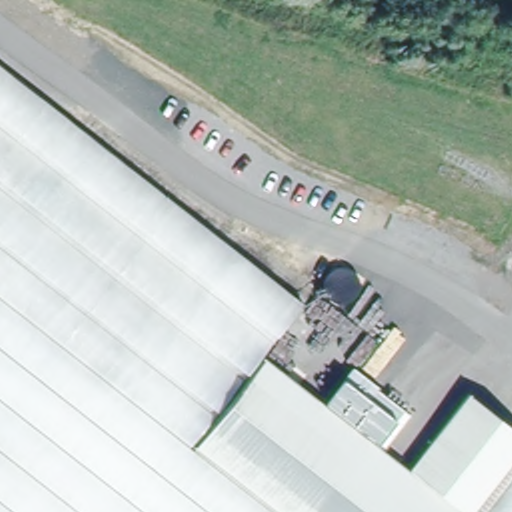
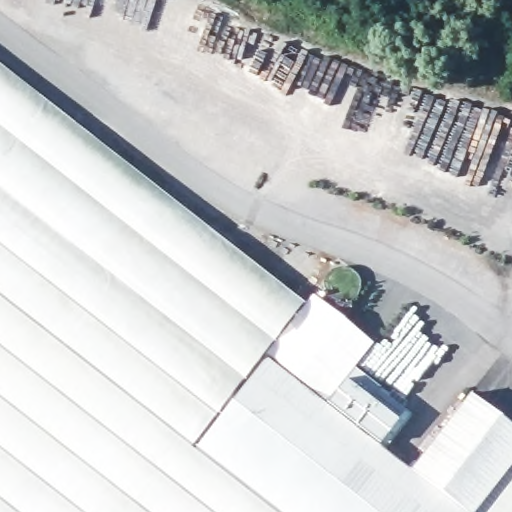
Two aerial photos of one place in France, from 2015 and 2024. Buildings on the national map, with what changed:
unchanged [(305,296),(185,442),(0,296),(0,58),(305,296)]
new [(354,367),(326,401),(265,356),(314,294),(374,343),(354,367)]
unchanged [(80,361),(0,394),(0,300),(80,361)]
unchanged [(321,407),(376,448),(407,471),(446,501),(461,512),(275,512),(191,447),(259,360),(321,407)]
unchanged [(15,512),(0,501),(0,394),(80,361),(146,413),(77,512),(15,512)]
unchanged [(354,367),(407,410),(376,448),(321,407),(354,367)]
unchanged [(512,428),(512,466),(486,498),(476,512),(461,512),(446,501),(407,471),(468,392),(512,428)]
unchanged [(275,512),(77,512),(146,413),(191,447),(275,512)]
unchanged [(512,512),(495,512),(486,498),(512,466),(512,512)]
unchanged [(495,512),(476,512),(486,498),(495,512)]
unchanged [(15,512),(0,512),(0,501),(15,512)]

